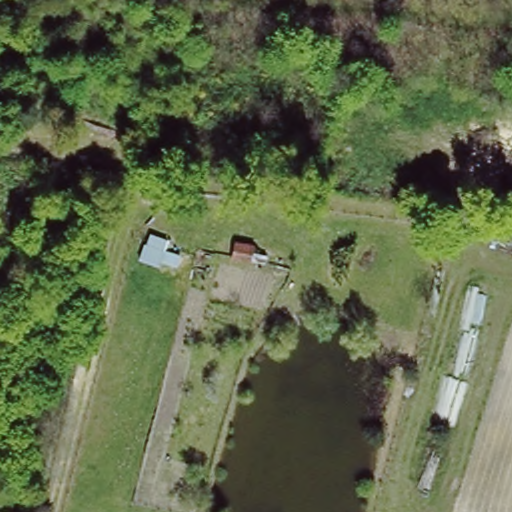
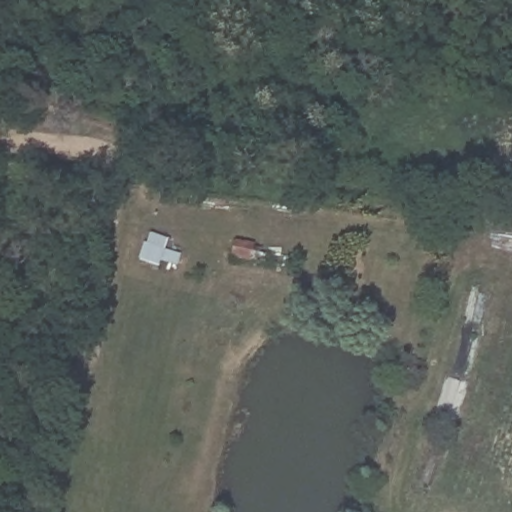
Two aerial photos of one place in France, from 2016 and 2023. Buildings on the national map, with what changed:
unchanged [(259,251),(254,264),(236,258),(240,246),(259,251)]
unchanged [(156,247),(186,255),(178,274),(153,267),(156,247)]

